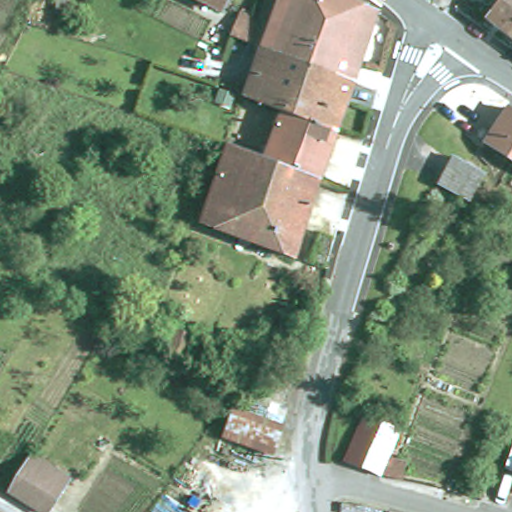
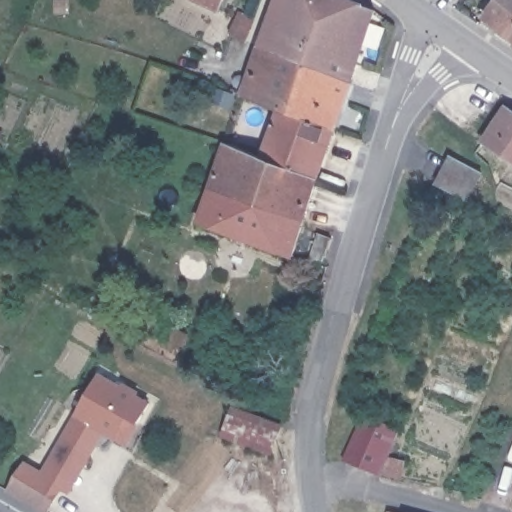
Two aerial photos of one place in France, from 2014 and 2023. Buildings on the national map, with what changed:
unchanged [(218,7),(204,0),(222,0),(218,7)]
unchanged [(362,45),(355,67),(349,86),(305,68),(260,50),(279,0),(339,0),(375,13),(362,45)]
unchanged [(510,38),(485,18),(499,0),(512,0),(512,39),(510,38)]
unchanged [(230,34),(236,19),(251,25),(245,39),(230,34)]
unchanged [(279,111),(243,97),(260,50),(305,68),(290,115),(279,111)]
unchanged [(343,103),(333,133),(290,115),(305,68),(349,86),(343,103)]
unchanged [(506,108),(512,112),(512,162),(484,143),(506,108)]
unchanged [(290,115),(333,133),(317,182),(261,162),(260,162),(279,111),(290,115)]
unchanged [(236,243),(238,238),(200,224),(225,150),(227,150),(260,162),(261,162),(317,182),(292,256),(292,258),(251,242),(248,248),(236,243)]
unchanged [(481,173),(470,200),(440,187),(452,160),(481,173)]
unchanged [(322,259),(310,255),(318,231),(330,235),(322,259)]
unchanged [(280,371),(285,354),(301,358),(296,375),(280,371)]
new [(65,484),(52,477),(42,472),(75,414),(99,373),(151,402),(126,445),(103,433),(67,497),(60,492),(65,484)]
unchanged [(271,455),(225,438),(235,410),(281,427),(271,455)]
unchanged [(345,460),(363,417),(395,429),(376,471),(345,460)]
unchanged [(52,477),(65,484),(47,512),(45,512),(7,490),(25,462),(34,467),(52,477)]

